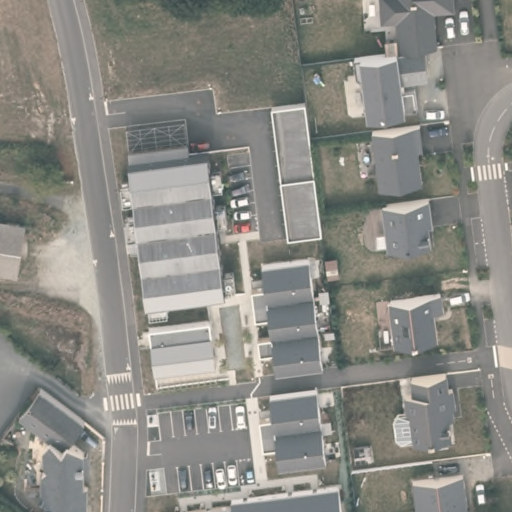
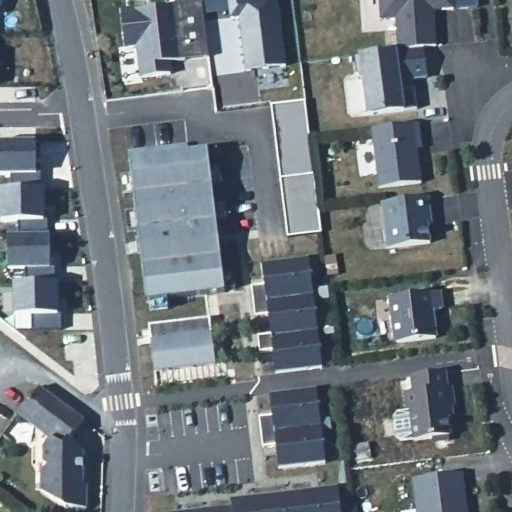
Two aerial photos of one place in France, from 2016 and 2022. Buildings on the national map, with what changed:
new [(286,66),(247,72),(240,19),(231,19),(229,0),(278,0),(286,66)]
unchanged [(398,50),(395,18),(381,19),(380,0),(453,0),(453,11),(434,12),(436,47),(424,49),(427,76),(402,79),(405,113),(367,117),(359,56),(398,50)]
new [(203,3),(209,58),(170,63),(171,75),(147,78),(143,45),(130,47),(126,13),(203,3)]
unchanged [(306,101),(321,233),(287,237),(271,105),(306,101)]
unchanged [(419,121),(422,148),(418,149),(421,182),(378,187),(371,130),(419,121)]
new [(36,141),(36,173),(0,174),(0,141),(36,141)]
unchanged [(210,169),(222,166),(223,185),(212,188),(214,204),(226,202),(227,222),(216,223),(222,272),(233,271),(236,290),(166,298),(167,311),(149,313),(139,232),(128,234),(126,213),(136,213),(134,197),(123,199),(121,178),(132,177),(131,159),(207,150),(210,169)]
new [(36,173),(36,172),(41,172),(41,188),(11,189),(11,173),(36,173)]
new [(43,188),(44,220),(1,221),(1,189),(43,188)]
unchanged [(430,198),(434,223),(429,225),(431,244),(387,250),(382,204),(430,198)]
new [(44,220),(44,219),(48,219),(48,235),(19,236),(18,220),(44,220)]
demolished [(20,233),(12,278),(0,276),(0,230),(20,233)]
new [(50,235),(51,267),(9,268),(8,236),(50,235)]
unchanged [(322,366),(274,372),(273,350),(260,352),(259,335),(272,335),(268,313),(255,316),(252,287),(264,285),(263,264),(307,258),(322,366)]
new [(51,267),(51,266),(55,266),(55,282),(26,283),(26,267),(51,267)]
new [(57,282),(57,314),(15,315),(15,283),(57,282)]
unchanged [(441,292),(443,309),(433,310),(437,340),(395,346),(389,298),(441,292)]
unchanged [(209,318),(213,363),(155,372),(149,326),(209,318)]
unchanged [(445,372),(447,388),(452,387),(454,413),(449,413),(450,438),(412,442),(410,416),(407,416),(404,394),(413,393),(412,377),(445,372)]
unchanged [(73,439),(87,451),(84,484),(87,484),(85,508),(65,506),(42,486),(44,470),(50,465),(46,461),(48,446),(54,438),(24,415),(45,387),(88,420),(73,439)]
unchanged [(325,461),(278,466),(277,445),(265,447),(261,417),(273,416),(270,395),(314,390),(325,461)]
unchanged [(415,512),(411,478),(463,472),(467,512),(415,512)]
unchanged [(186,512),(232,505),(231,500),(335,487),(339,512),(186,512)]

